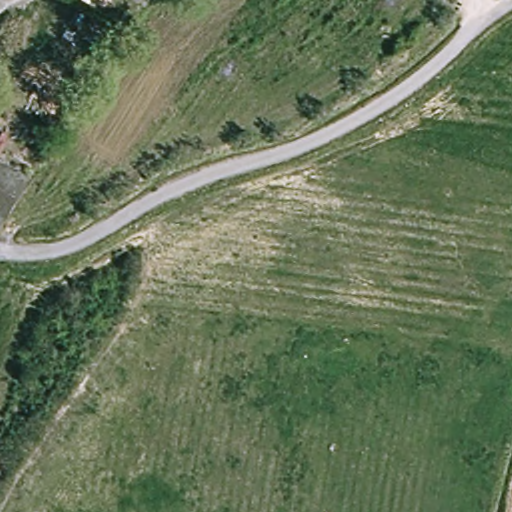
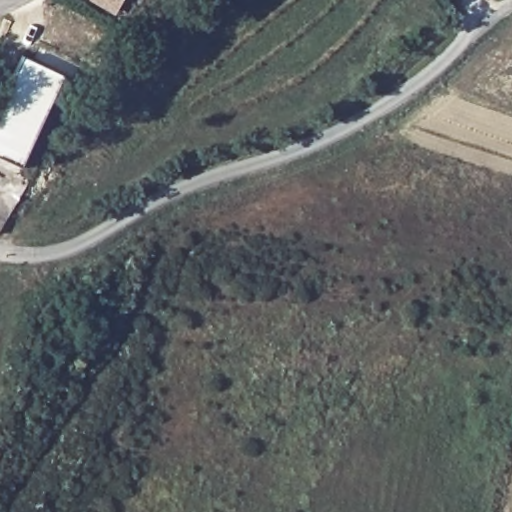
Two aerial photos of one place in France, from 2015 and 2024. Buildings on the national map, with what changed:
new [(0,102),(21,56),(60,74),(16,165),(0,156),(0,102)]
unchanged [(0,224),(0,156),(28,172),(0,224)]

